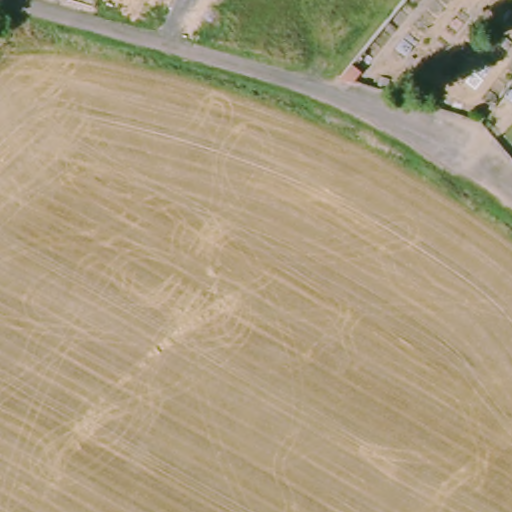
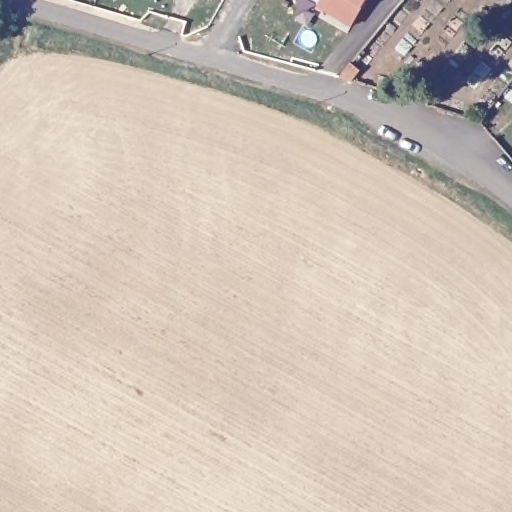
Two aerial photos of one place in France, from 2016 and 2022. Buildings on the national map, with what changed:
new [(361,8),(351,27),(318,8),(322,0),(366,0),(361,8)]

